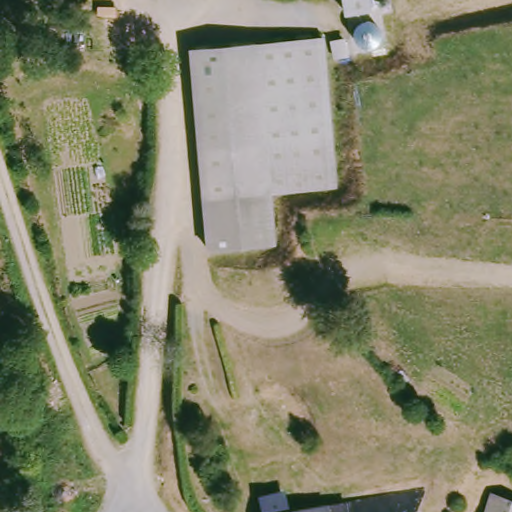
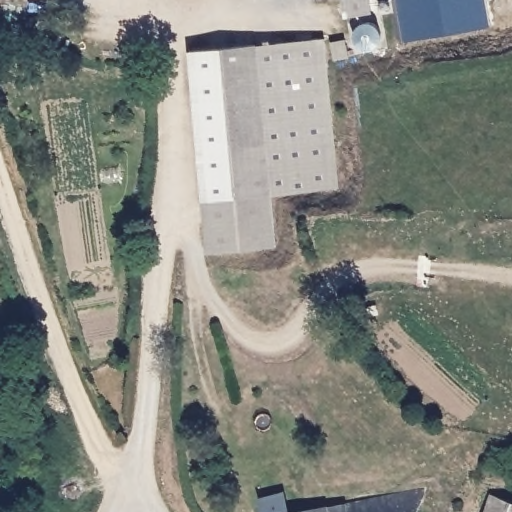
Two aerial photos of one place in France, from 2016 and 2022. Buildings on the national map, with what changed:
unchanged [(372,10),(343,14),(341,0),(371,0),(372,10)]
new [(396,0),(484,0),(489,27),(402,41),(396,0)]
unchanged [(375,21),(380,25),(382,30),(382,38),(381,41),(377,45),(373,47),(369,47),(362,46),(358,41),(356,35),(357,29),(361,24),(368,20),(375,21)]
unchanged [(324,37),(337,191),(273,196),(278,246),(207,252),(190,49),(324,37)]
unchanged [(280,491),(284,510),(325,502),(325,503),(421,490),(410,512),(258,512),(255,496),(280,491)]
unchanged [(512,500),(512,512),(485,512),(490,493),(512,500)]

